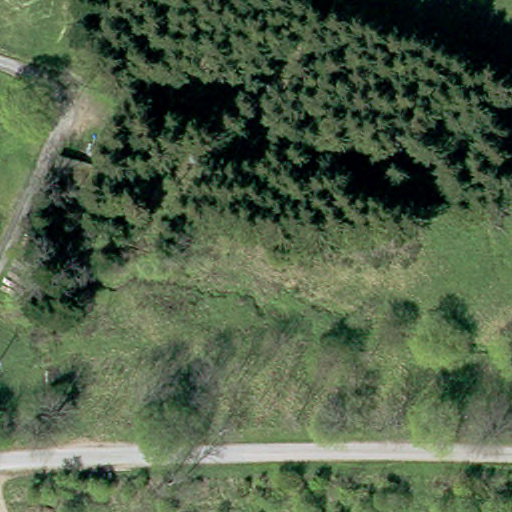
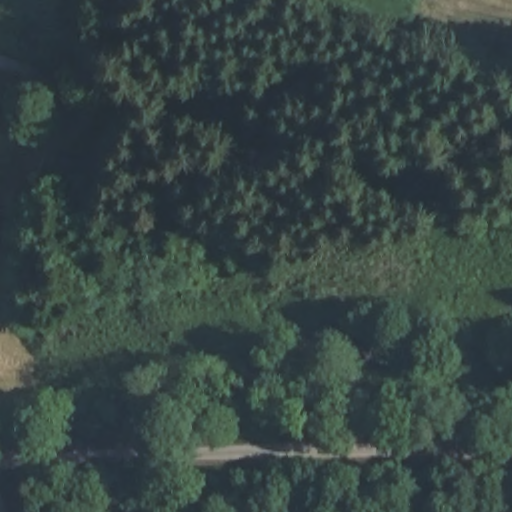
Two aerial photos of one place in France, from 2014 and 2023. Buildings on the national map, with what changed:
unchanged [(100,170),(95,194),(67,187),(73,164),(100,170)]

